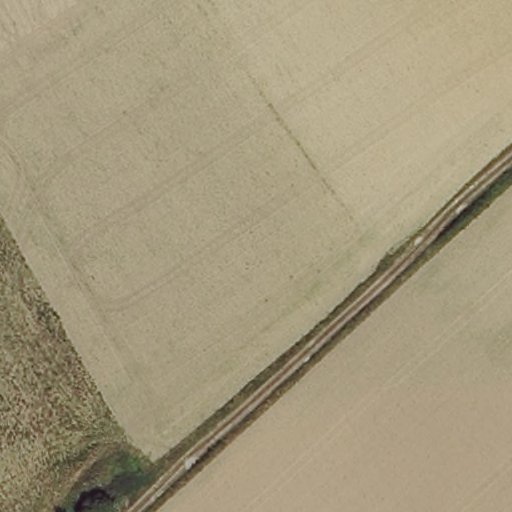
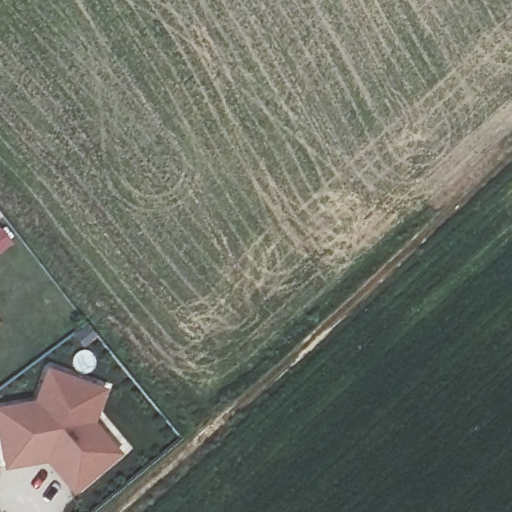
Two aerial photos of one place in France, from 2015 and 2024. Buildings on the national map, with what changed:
new [(36,399),(48,367),(111,387),(98,423),(123,455),(75,494),(48,463),(4,470),(0,444),(0,407),(36,399)]

